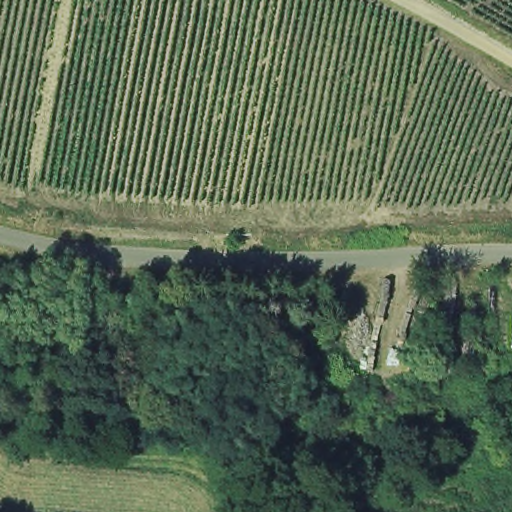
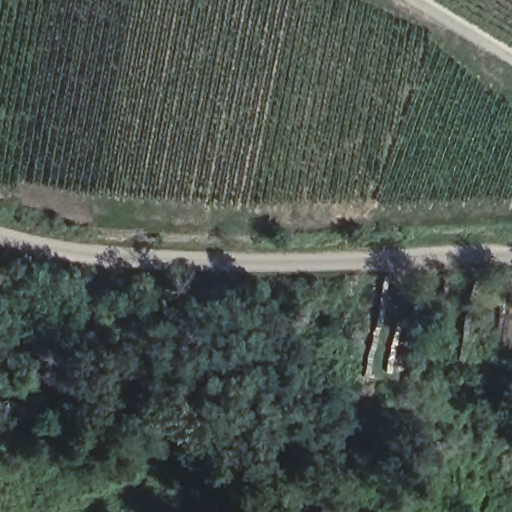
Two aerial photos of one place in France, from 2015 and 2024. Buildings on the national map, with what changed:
[]

